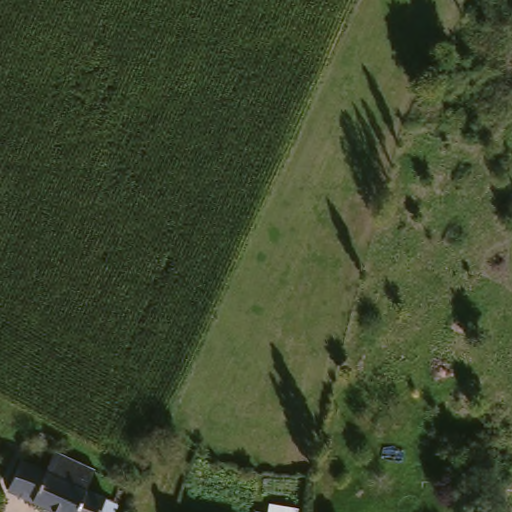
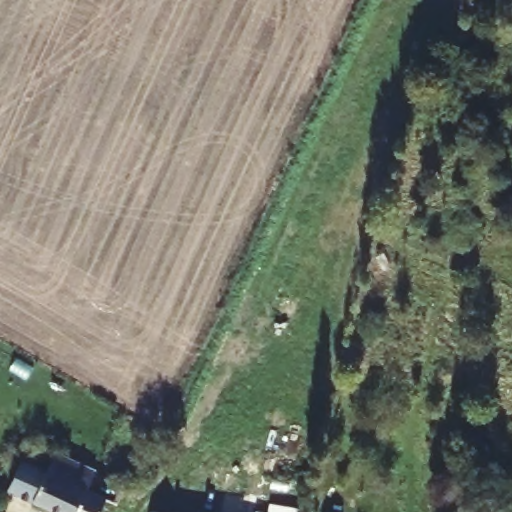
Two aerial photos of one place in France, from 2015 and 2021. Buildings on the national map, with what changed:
unchanged [(99,512),(52,512),(6,493),(20,462),(45,473),(54,453),(93,471),(86,489),(105,498),(99,512)]
unchanged [(273,505),(301,509),(300,512),(272,512),(273,505)]

